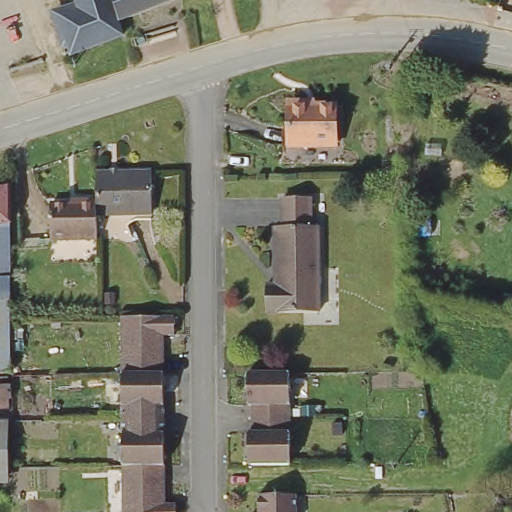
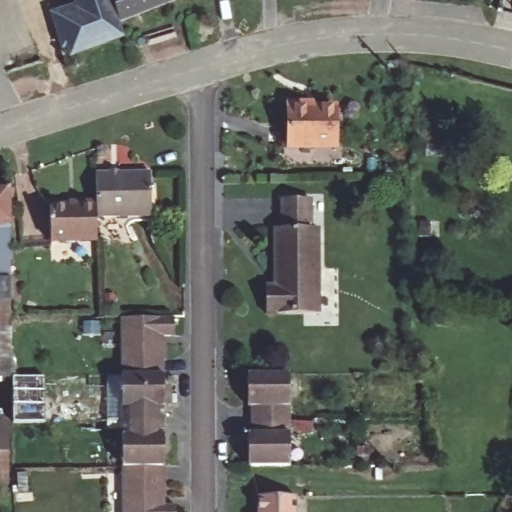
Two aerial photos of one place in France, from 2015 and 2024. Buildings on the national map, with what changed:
unchanged [(77,16),(72,0),(113,0),(121,27),(125,42),(67,64),(55,24),(77,16)]
unchanged [(182,2),(121,27),(113,0),(193,0),(182,2)]
unchanged [(336,109),(337,148),(287,149),(287,109),(336,109)]
unchanged [(150,175),(150,218),(95,217),(95,202),(95,175),(150,175)]
unchanged [(14,317),(14,373),(0,374),(0,186),(12,182),(14,317)]
unchanged [(276,229),(284,229),(283,197),(311,197),(311,229),(319,229),(320,272),(280,272),(276,271),(276,229)]
unchanged [(50,241),(50,206),(77,206),(77,201),(95,202),(95,217),(96,241),(50,241)]
unchanged [(280,286),(280,272),(320,272),(320,314),(267,314),(268,286),(280,286)]
unchanged [(122,321),(177,321),(177,340),(164,340),(164,378),(122,379),(122,321)]
unchanged [(249,407),(244,408),(244,375),(287,375),(288,423),(249,422),(249,407)]
unchanged [(122,379),(164,378),(164,425),(123,425),(122,379)]
unchanged [(11,482),(0,483),(0,420),(7,420),(11,482)]
unchanged [(288,423),(289,468),(245,467),(245,436),(250,436),(249,422),(288,423)]
unchanged [(164,425),(165,470),(123,470),(123,425),(164,425)]
unchanged [(165,470),(165,510),(178,510),(178,512),(123,512),(123,470),(165,470)]
unchanged [(298,497),(298,512),(259,512),(259,498),(298,497)]

